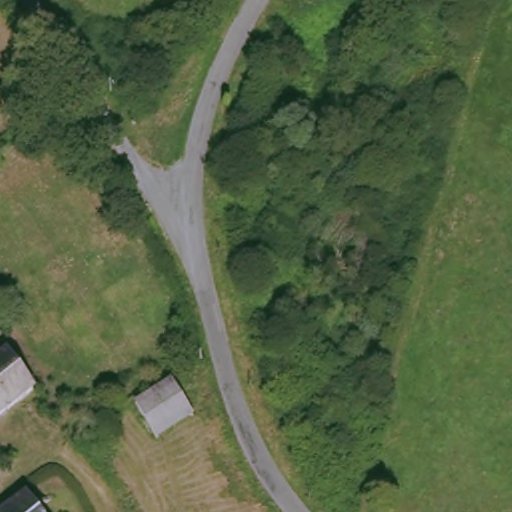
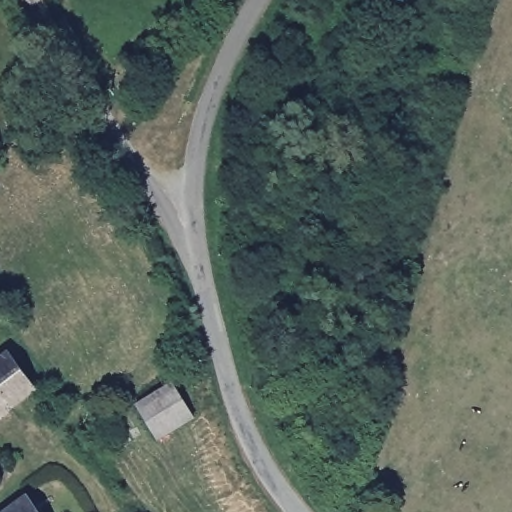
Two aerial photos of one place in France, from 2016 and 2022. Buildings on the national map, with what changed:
unchanged [(36,393),(0,417),(0,364),(12,357),(36,393)]
unchanged [(131,410),(174,386),(193,419),(151,444),(131,410)]
unchanged [(31,497),(46,512),(11,512),(31,497)]

